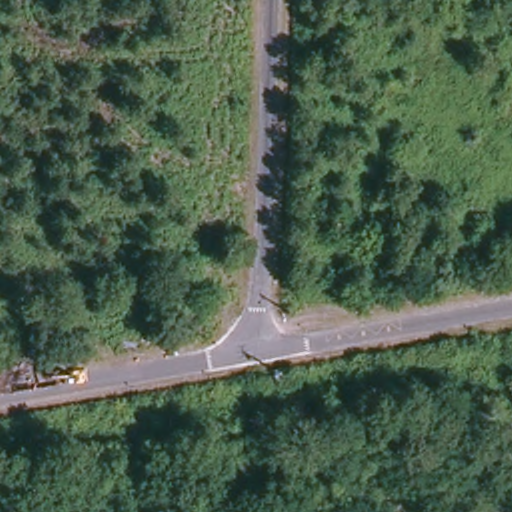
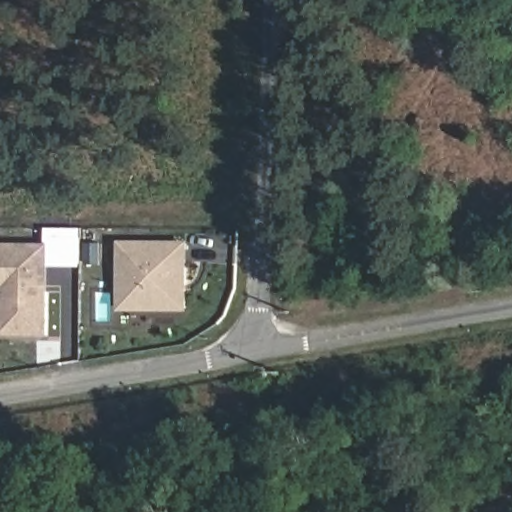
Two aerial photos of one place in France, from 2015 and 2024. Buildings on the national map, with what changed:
new [(85,227),(83,267),(49,266),(49,242),(45,242),(46,227),(85,227)]
new [(187,309),(187,310),(117,310),(119,239),(188,241),(187,309)]
new [(0,335),(0,242),(49,242),(48,335),(0,335)]

